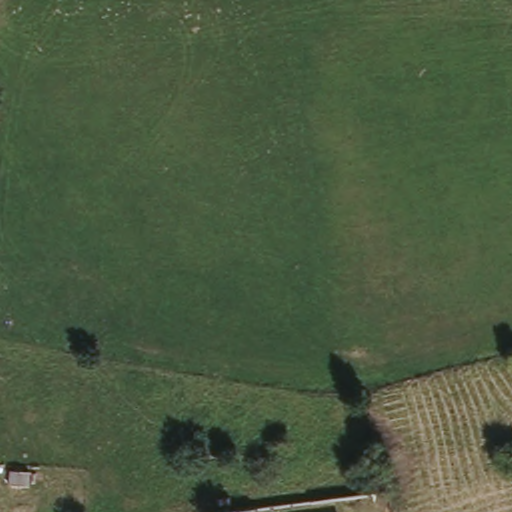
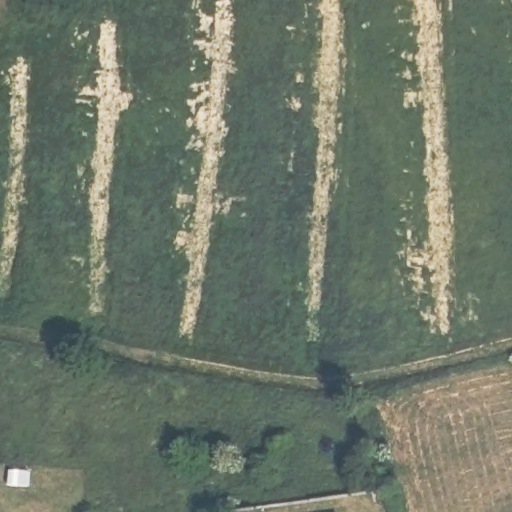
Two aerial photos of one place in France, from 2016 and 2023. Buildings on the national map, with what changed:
unchanged [(216,495),(228,494),(231,507),(218,508),(216,495)]

